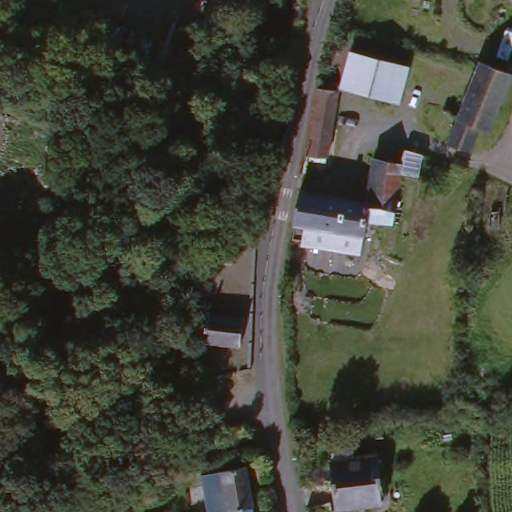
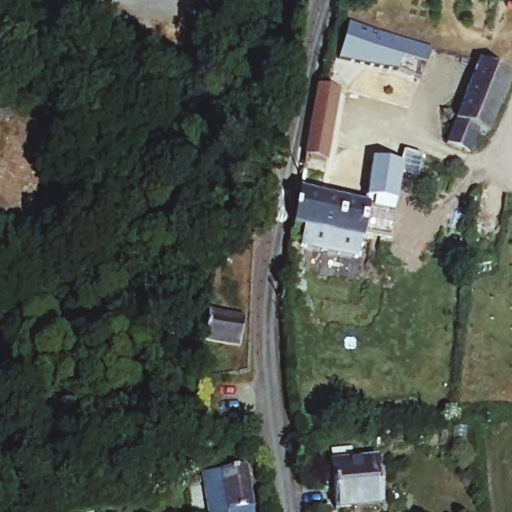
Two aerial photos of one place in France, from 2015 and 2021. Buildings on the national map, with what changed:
new [(349,25),(434,47),(421,79),(401,70),(338,61),(349,25)]
demolished [(348,47),(406,63),(396,100),(338,84),(348,47)]
unchanged [(481,64),(496,70),(512,76),(512,81),(489,137),(481,132),(470,156),(447,146),(481,64)]
unchanged [(306,126),(314,82),(334,87),(320,170),(299,167),(306,126)]
unchanged [(301,190),(364,206),(366,195),(369,195),(376,162),(393,167),(396,150),(461,169),(456,186),(404,172),(396,225),(388,224),(371,221),(369,226),(364,257),(304,246),(306,226),(295,224),(301,190)]
unchanged [(206,312),(244,316),(240,345),(203,342),(206,312)]
unchanged [(201,415),(224,414),(224,432),(201,433),(201,415)]
unchanged [(326,460),(372,453),(379,500),(334,505),(326,460)]
unchanged [(210,490),(207,470),(246,462),(255,510),(243,512),(240,512),(238,504),(226,507),(227,512),(209,512),(204,491),(210,490)]

